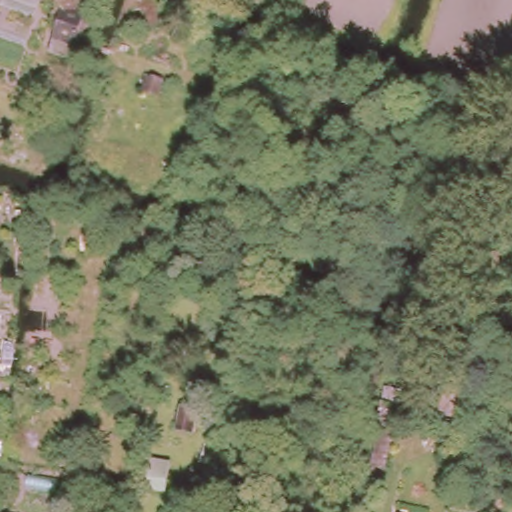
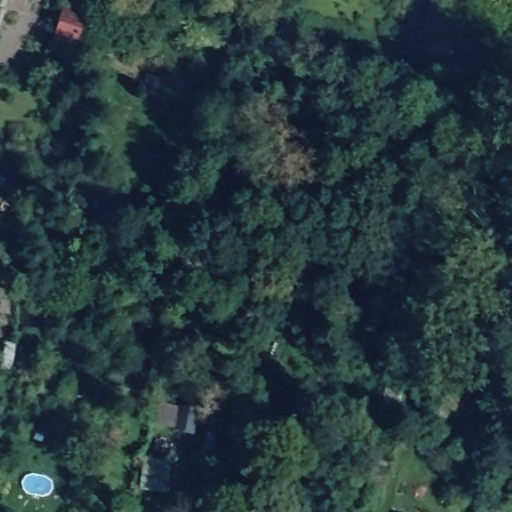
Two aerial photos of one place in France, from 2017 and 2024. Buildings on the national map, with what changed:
unchanged [(89,2),(83,23),(86,24),(83,32),(80,32),(70,60),(51,54),(69,0),(82,0),(89,2)]
unchanged [(160,96),(143,91),(149,74),(166,81),(160,96)]
unchanged [(178,241),(243,270),(239,286),(175,257),(178,241)]
unchanged [(164,389),(178,392),(176,406),(191,409),(186,437),(156,432),(164,389)]
unchanged [(136,492),(138,482),(161,486),(159,497),(136,492)]

